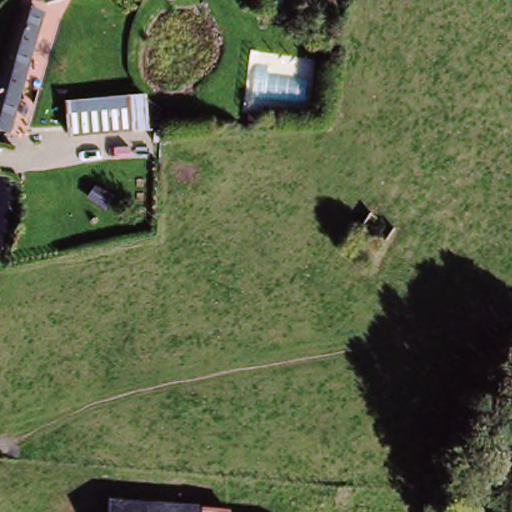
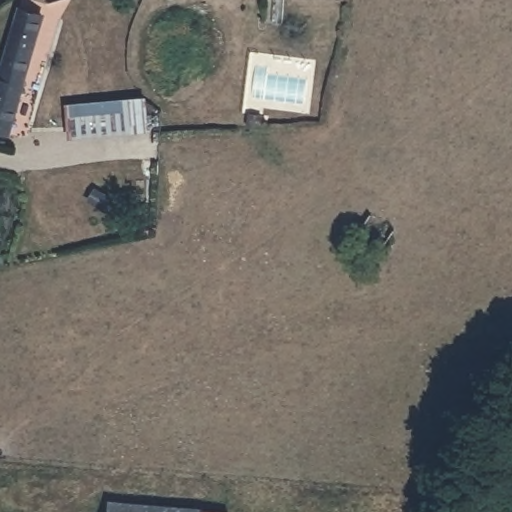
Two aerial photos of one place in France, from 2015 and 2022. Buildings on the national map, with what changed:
unchanged [(0,133),(0,69),(17,9),(44,18),(7,135),(0,133)]
unchanged [(130,98),(132,128),(132,129),(72,134),(70,104),(130,98)]
unchanged [(201,512),(106,512),(107,504),(201,512)]

